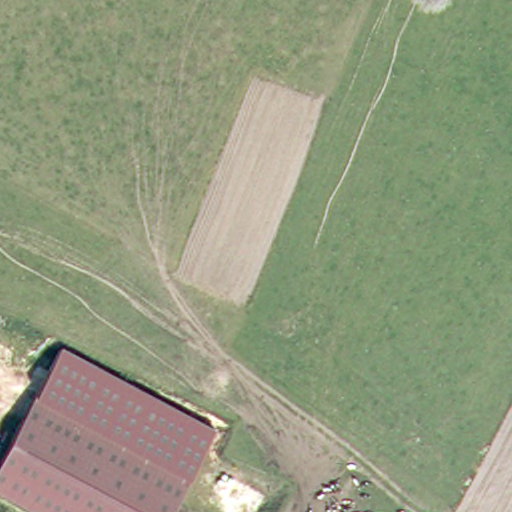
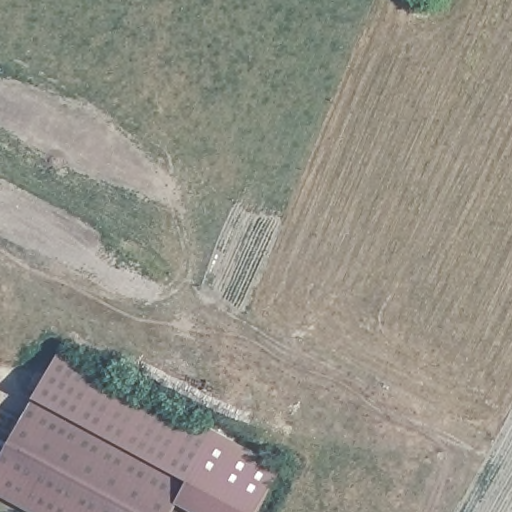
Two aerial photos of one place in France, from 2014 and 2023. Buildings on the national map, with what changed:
unchanged [(62,345),(213,427),(189,476),(38,394),(62,345)]
unchanged [(189,476),(170,512),(44,512),(0,488),(0,455),(34,392),(189,476)]
new [(213,427),(283,466),(258,512),(200,512),(176,499),(189,476),(213,427)]

